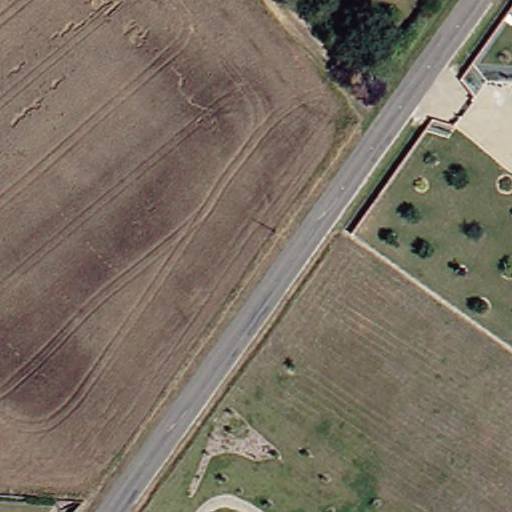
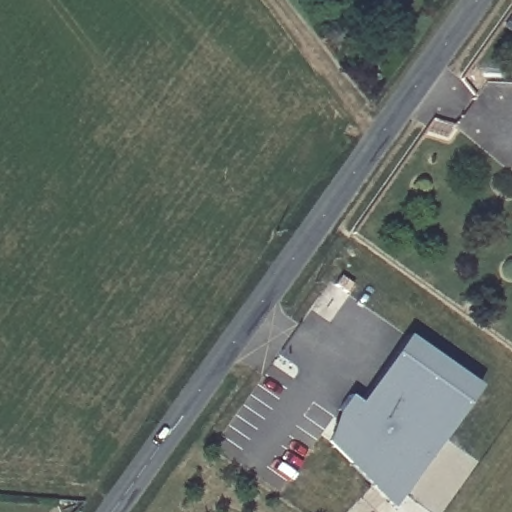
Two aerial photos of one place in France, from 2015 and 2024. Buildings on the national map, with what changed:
new [(336,420),(339,422),(344,415),(333,407),(343,392),(354,400),(402,333),(474,385),(389,504),(323,438),(336,420)]

